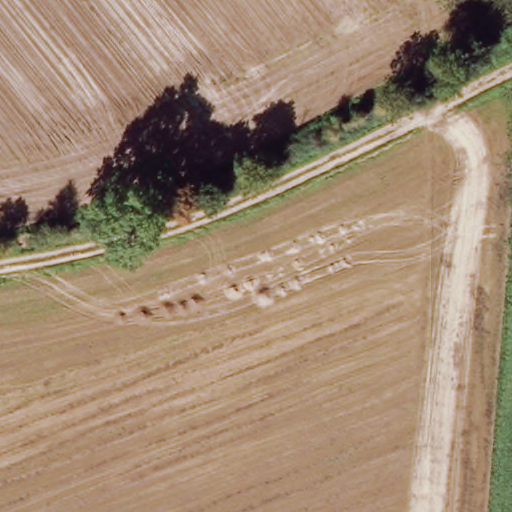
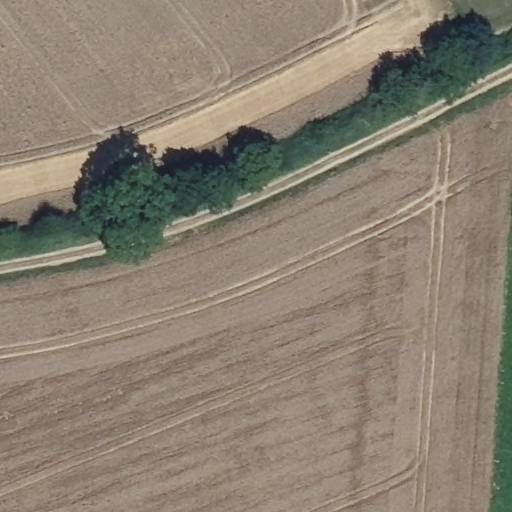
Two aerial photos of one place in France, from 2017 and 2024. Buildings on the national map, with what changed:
[]

